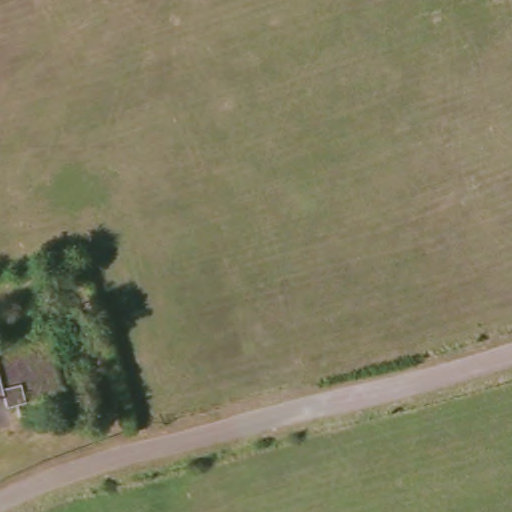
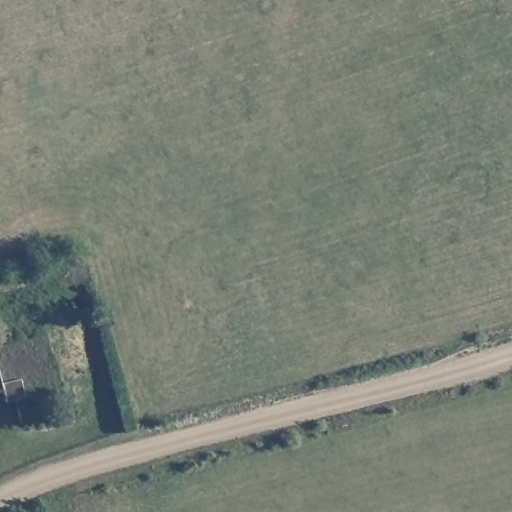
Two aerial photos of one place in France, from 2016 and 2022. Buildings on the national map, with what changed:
unchanged [(64,389),(9,404),(4,383),(0,366),(0,344),(50,331),(64,389)]
unchanged [(0,385),(0,366),(4,383),(0,385)]

